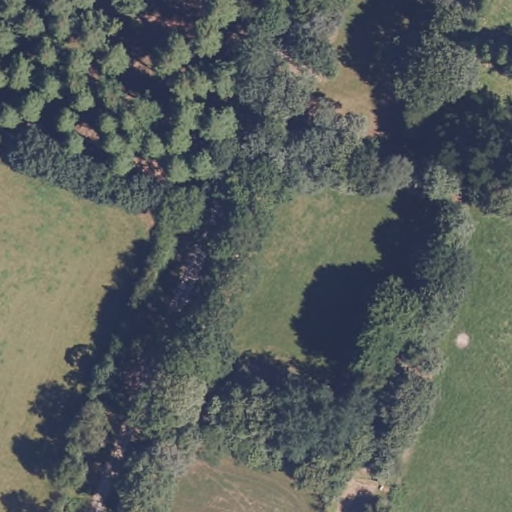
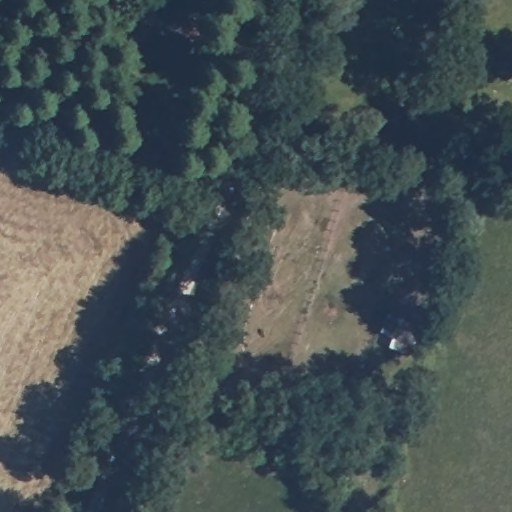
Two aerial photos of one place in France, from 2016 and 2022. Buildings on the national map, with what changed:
unchanged [(381,358),(388,341),(370,333),(379,306),(422,324),(401,369),(381,358)]

